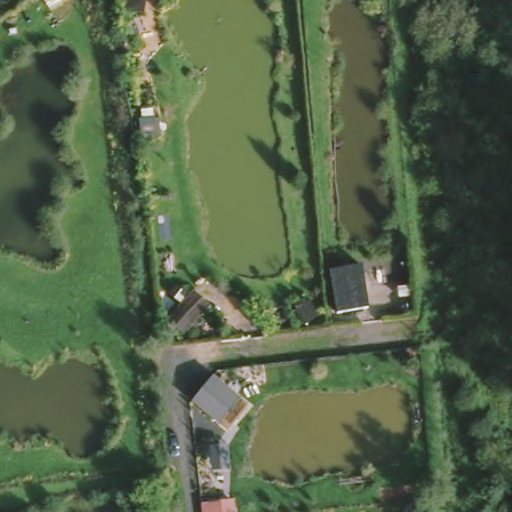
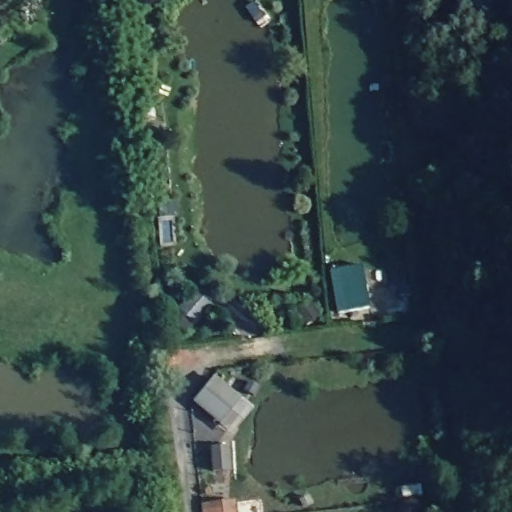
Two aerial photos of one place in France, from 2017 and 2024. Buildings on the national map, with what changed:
unchanged [(327,274),(362,266),(370,311),(335,318),(327,274)]
unchanged [(166,321),(190,289),(207,302),(181,333),(166,321)]
unchanged [(212,376),(240,397),(218,426),(191,403),(212,376)]

